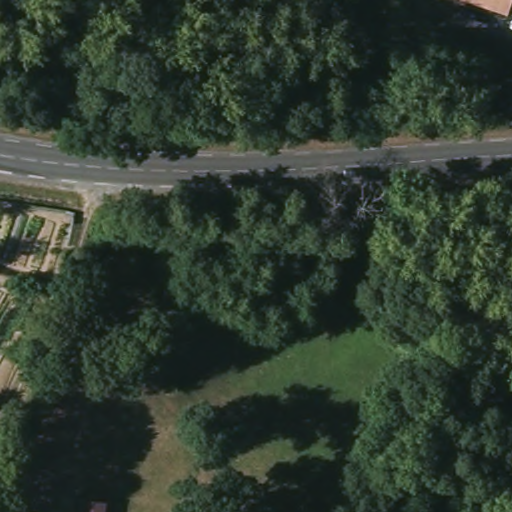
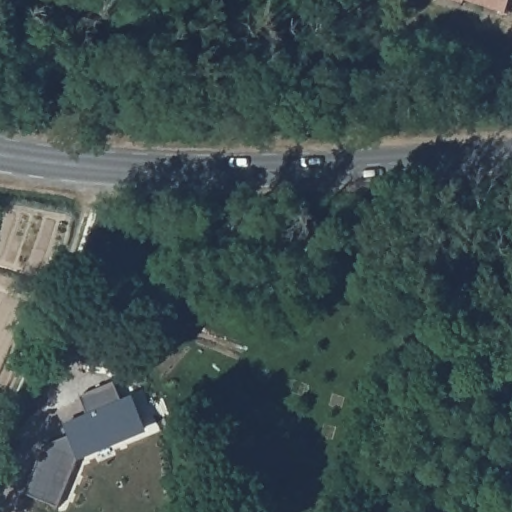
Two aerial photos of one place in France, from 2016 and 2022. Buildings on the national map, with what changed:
unchanged [(507,17),(466,4),(464,7),(443,0),(512,0),(512,1),(509,9),(507,17)]
new [(29,493),(45,448),(70,437),(66,425),(88,415),(81,397),(116,383),(121,400),(134,396),(148,432),(79,460),(60,507),(29,493)]

